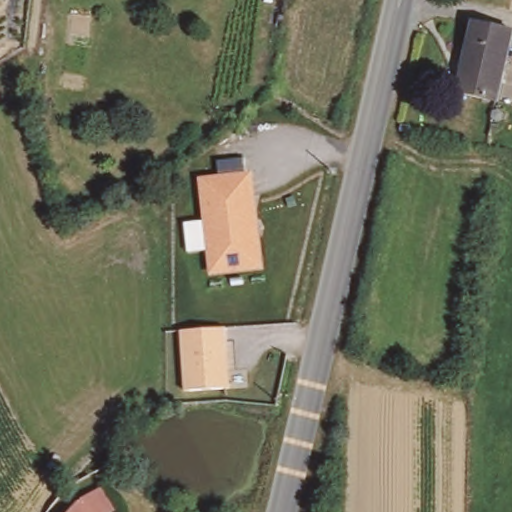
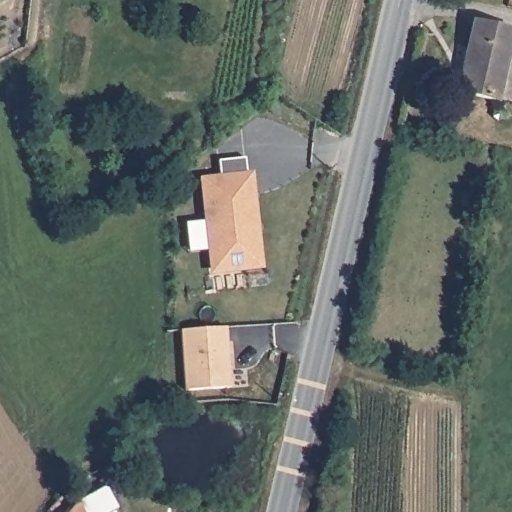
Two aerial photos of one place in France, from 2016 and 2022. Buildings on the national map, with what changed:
unchanged [(512,31),(512,35),(496,103),(456,93),(471,21),(512,31)]
unchanged [(249,177),(251,266),(205,267),(203,178),(249,177)]
unchanged [(229,388),(183,391),(180,333),(226,329),(229,388)]
unchanged [(78,501),(101,487),(115,509),(110,512),(67,512),(78,501)]

